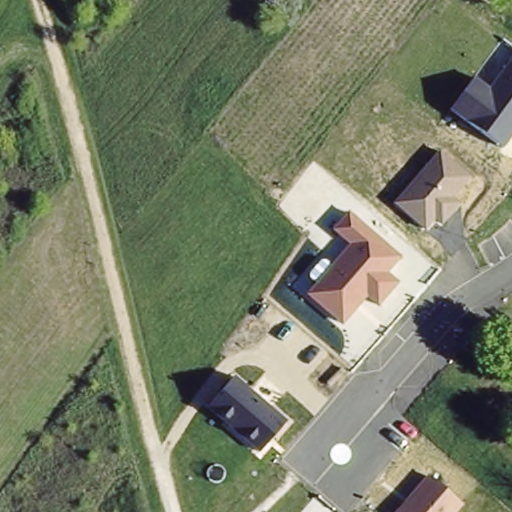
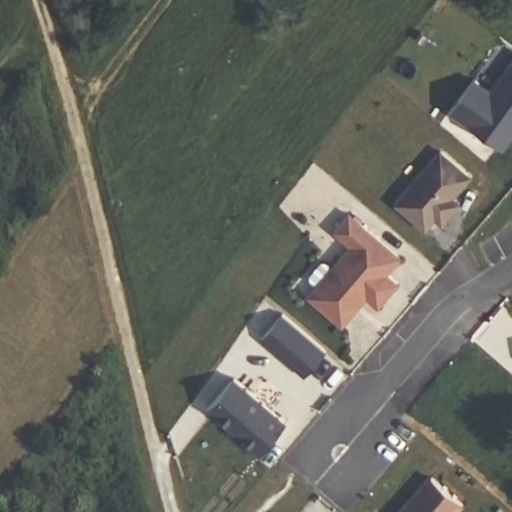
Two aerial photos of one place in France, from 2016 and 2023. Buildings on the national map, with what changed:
unchanged [(476,74),(491,86),(512,56),(512,134),(503,147),(449,111),(476,74)]
unchanged [(437,152),(468,177),(451,198),(456,202),(442,221),(436,217),(427,228),(396,202),(437,152)]
unchanged [(306,294),(349,244),(333,230),(349,211),(401,257),(388,272),(400,282),(378,307),(367,297),(342,325),(306,294)]
new [(295,356),(264,330),(281,310),(311,337),(326,349),(309,369),(295,356)]
unchanged [(258,453),(203,411),(236,374),(287,418),(258,453)]
unchanged [(462,501),(453,512),(395,512),(427,472),(462,501)]

